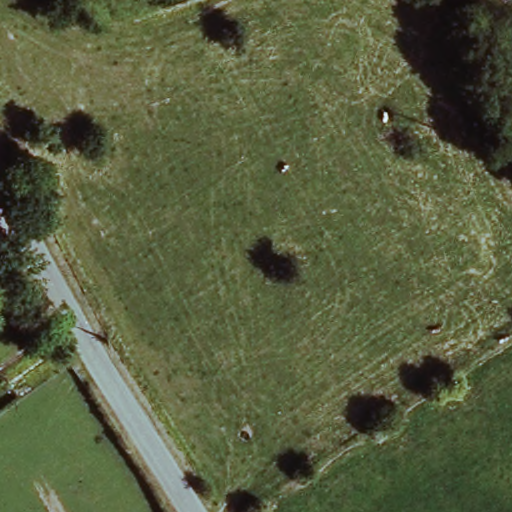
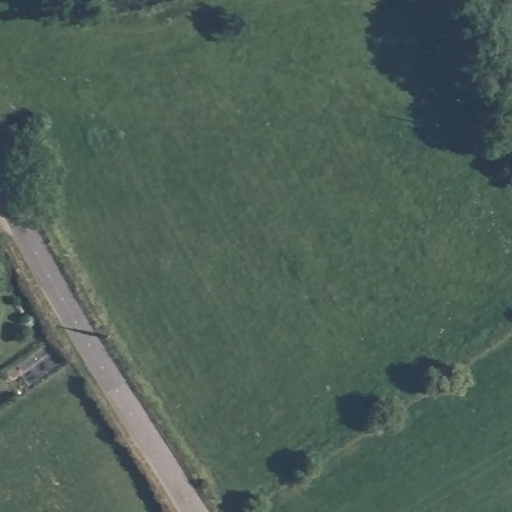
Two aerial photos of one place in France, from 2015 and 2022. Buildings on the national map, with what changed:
[]

